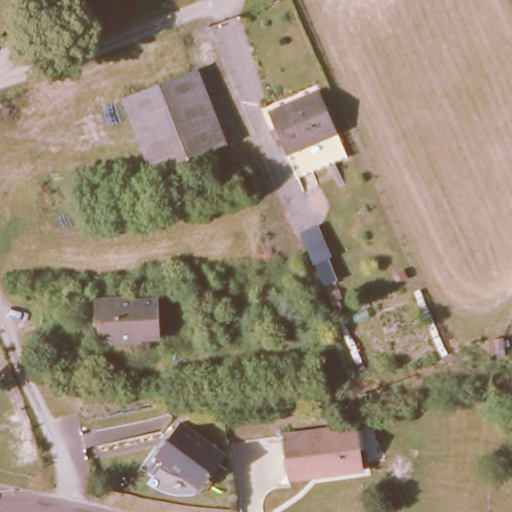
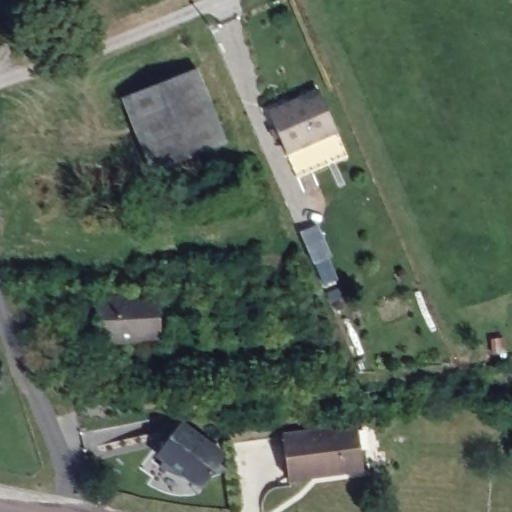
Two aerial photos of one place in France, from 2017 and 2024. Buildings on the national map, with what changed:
unchanged [(153,174),(123,100),(194,71),(224,143),(153,174)]
unchanged [(268,114),(316,93),(333,133),(284,154),(268,114)]
unchanged [(156,337),(143,338),(136,332),(131,339),(93,340),(93,320),(88,321),(87,299),(104,299),(104,293),(131,291),(131,297),(153,294),(156,337)]
unchanged [(183,419),(226,452),(203,487),(157,456),(183,419)]
unchanged [(288,473),(283,431),(358,423),(361,467),(288,473)]

